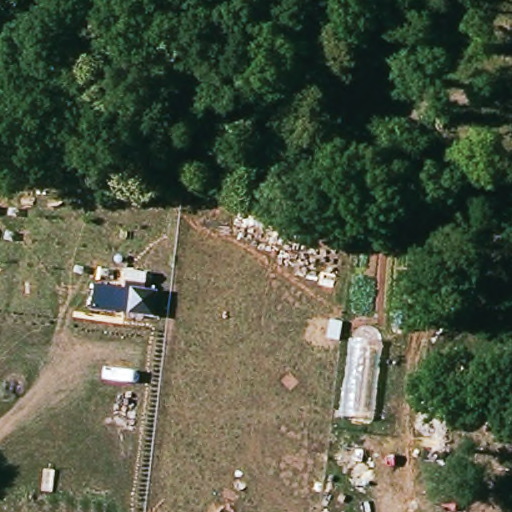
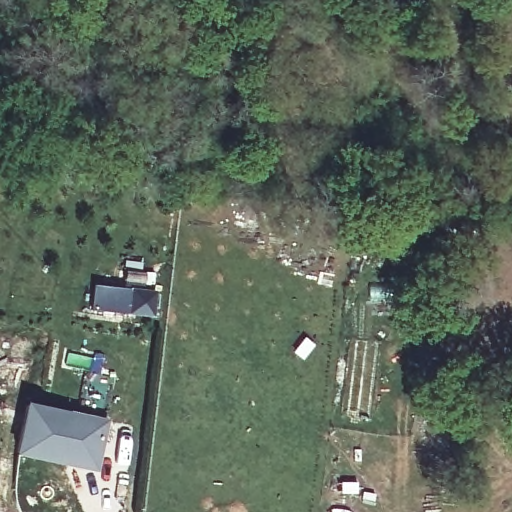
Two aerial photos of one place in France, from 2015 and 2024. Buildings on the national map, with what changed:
unchanged [(143,290),(158,292),(155,318),(127,314),(91,310),(94,285),(124,288),(125,282),(144,284),(143,290)]
new [(27,403),(108,420),(98,471),(16,455),(27,403)]

